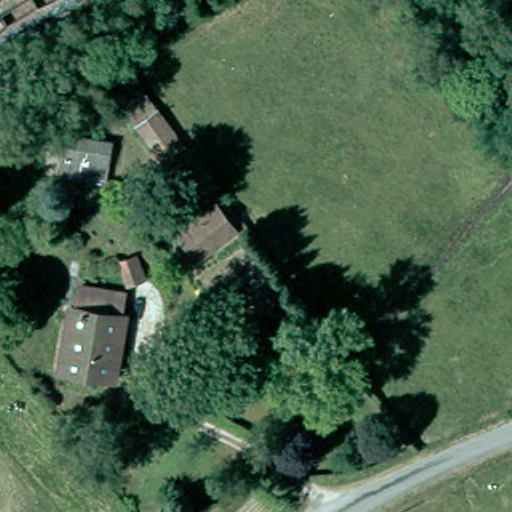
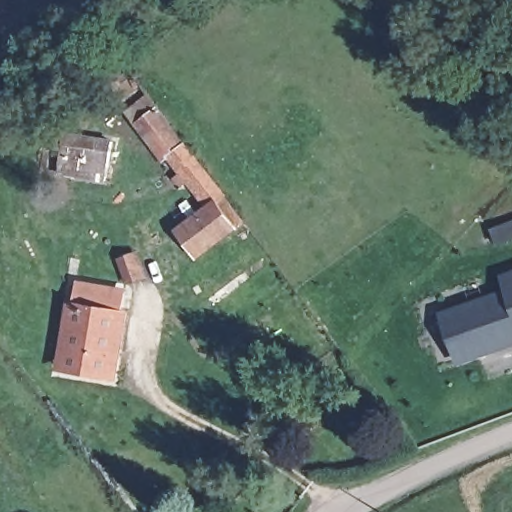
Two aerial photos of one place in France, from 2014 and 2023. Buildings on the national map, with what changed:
unchanged [(115,95),(138,77),(159,106),(140,121),(137,123),(115,95)]
unchanged [(201,255),(183,232),(212,208),(174,156),(168,160),(140,121),(159,106),(245,221),(201,255)]
unchanged [(105,183),(55,177),(55,180),(38,179),(46,127),(63,129),(62,136),(110,143),(105,183)]
new [(491,229),(512,221),(512,240),(496,246),(491,229)]
unchanged [(151,240),(155,269),(136,271),(133,242),(151,240)]
new [(512,348),(458,367),(438,311),(506,290),(501,274),(512,271),(512,348)]
unchanged [(73,320),(71,320),(76,294),(81,295),(84,277),(85,274),(130,282),(126,306),(131,306),(125,337),(118,372),(73,364),(65,362),(73,320)]

